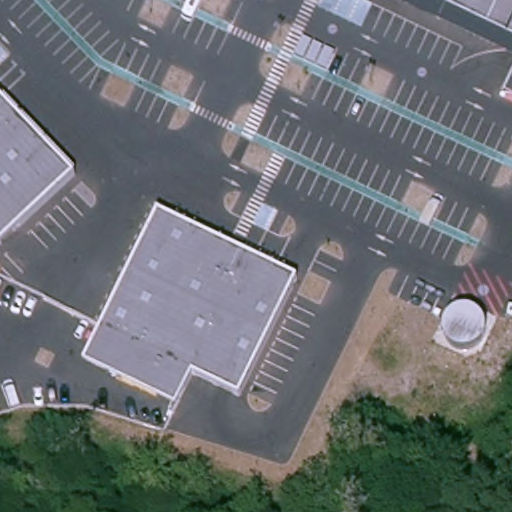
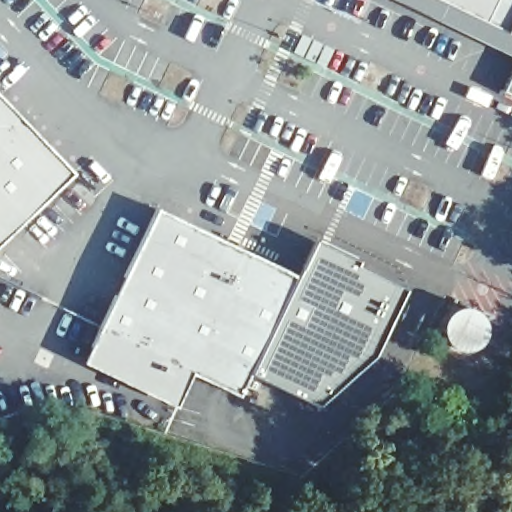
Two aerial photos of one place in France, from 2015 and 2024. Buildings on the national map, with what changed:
unchanged [(512,0),(512,53),(390,0),(512,0)]
unchanged [(512,76),(512,99),(504,95),(512,76)]
unchanged [(74,174),(0,243),(0,97),(74,174)]
unchanged [(296,277),(239,396),(192,374),(177,408),(85,362),(157,213),(296,277)]
new [(374,354),(318,404),(250,374),(296,277),(314,238),(354,255),(351,262),(405,290),(374,354)]

